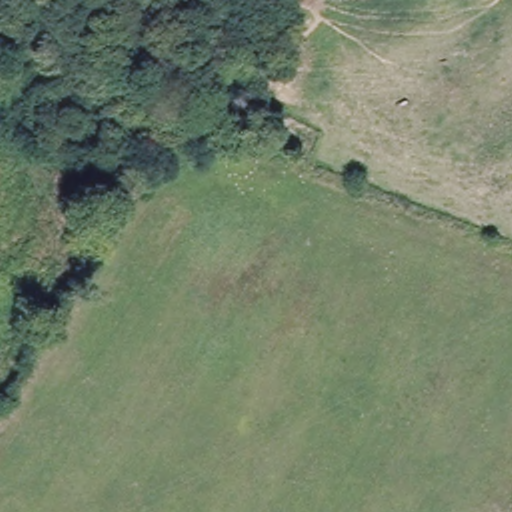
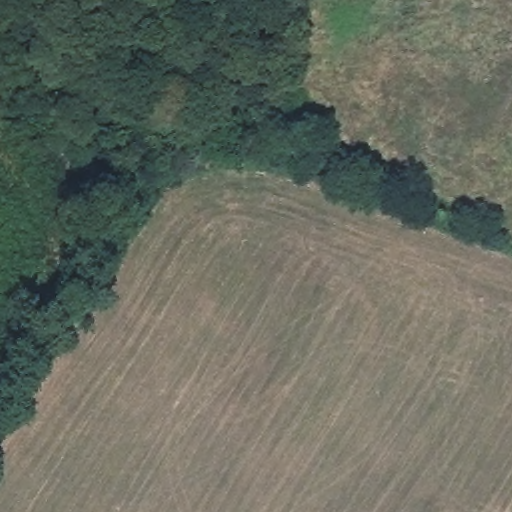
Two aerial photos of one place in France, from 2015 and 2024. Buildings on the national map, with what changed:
[]

